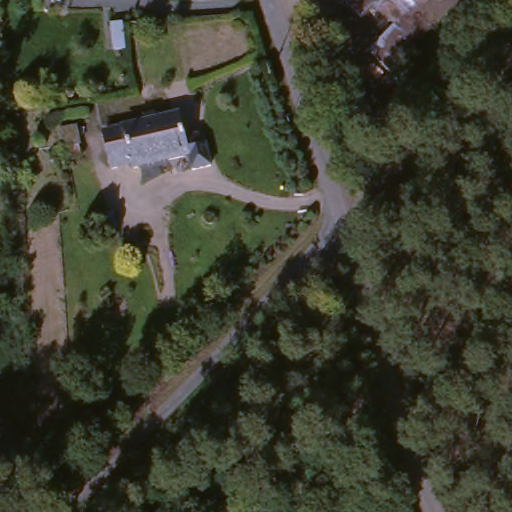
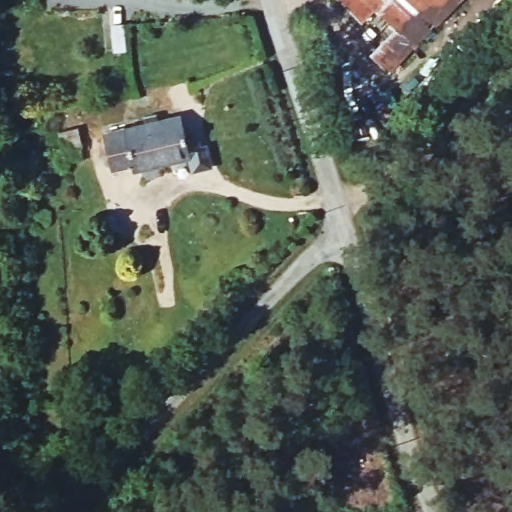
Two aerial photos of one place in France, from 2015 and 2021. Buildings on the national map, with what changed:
unchanged [(341,0),(461,0),(409,56),(341,0)]
unchanged [(206,165),(188,170),(184,156),(126,170),(124,165),(104,171),(94,134),(174,115),(181,141),(193,138),(196,148),(201,146),(206,165)]

